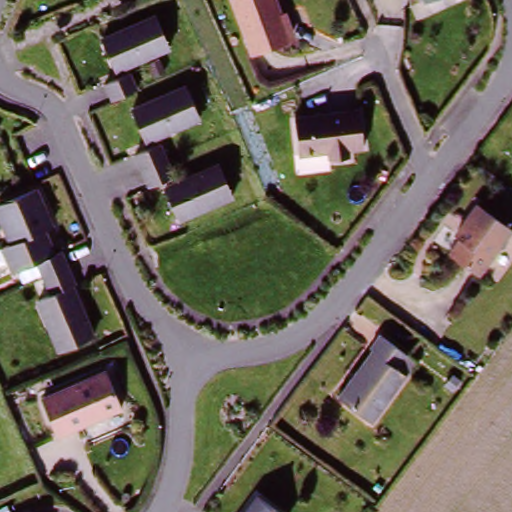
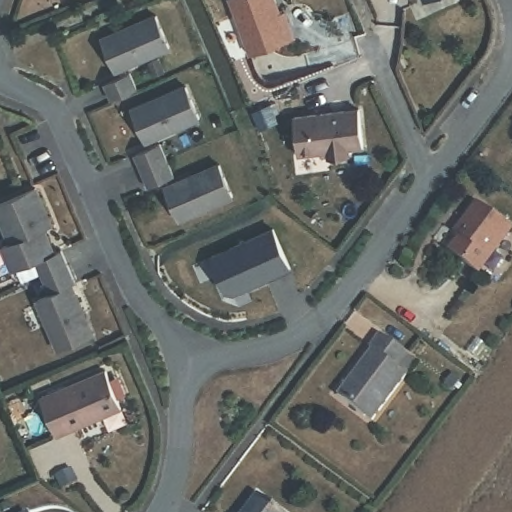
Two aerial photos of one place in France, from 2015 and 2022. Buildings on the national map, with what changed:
unchanged [(271,0),(285,37),(247,53),(227,0),(271,0)]
unchanged [(103,42),(157,20),(169,49),(115,71),(103,42)]
unchanged [(105,85),(130,74),(137,91),(112,101),(105,85)]
unchanged [(157,137),(146,107),(200,86),(212,115),(157,137)]
unchanged [(350,147),(350,157),(330,159),(330,151),(299,155),(294,120),(357,112),(362,146),(350,147)]
unchanged [(161,181),(155,166),(149,150),(173,141),(179,156),(185,172),(161,181)]
unchanged [(234,205),(180,227),(167,196),(221,174),(234,205)]
unchanged [(0,209),(37,194),(52,232),(44,236),(12,249),(0,221),(0,209)]
unchanged [(465,244),(462,239),(481,214),(512,236),(512,240),(482,280),(455,260),(465,244)]
new [(278,232),(295,271),(238,296),(229,292),(215,259),(278,232)]
unchanged [(37,306),(49,301),(42,284),(35,267),(14,277),(4,252),(12,249),(44,236),(54,260),(63,256),(70,272),(77,288),(71,292),(92,340),(59,355),(37,306)]
unchanged [(372,356),(370,353),(379,341),(405,360),(415,367),(406,380),(372,425),(338,402),(372,356)]
unchanged [(104,372),(117,406),(50,438),(37,397),(104,372)]
unchanged [(254,497),(272,512),(242,512),(254,497)]

